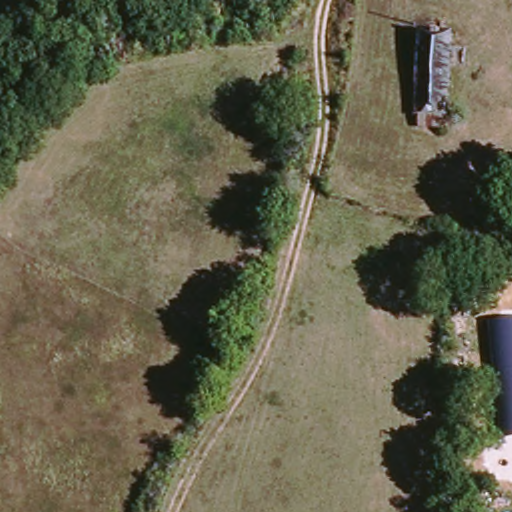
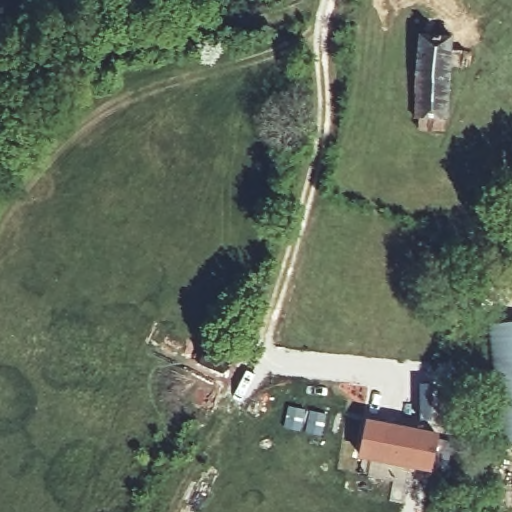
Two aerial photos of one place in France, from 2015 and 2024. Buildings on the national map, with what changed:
unchanged [(411,126),(420,44),(451,47),(442,128),(411,126)]
unchanged [(512,319),(512,441),(499,442),(486,322),(512,319)]
unchanged [(208,348),(232,358),(225,376),(202,366),(208,348)]
new [(438,433),(430,472),(357,458),(366,418),(438,433)]

